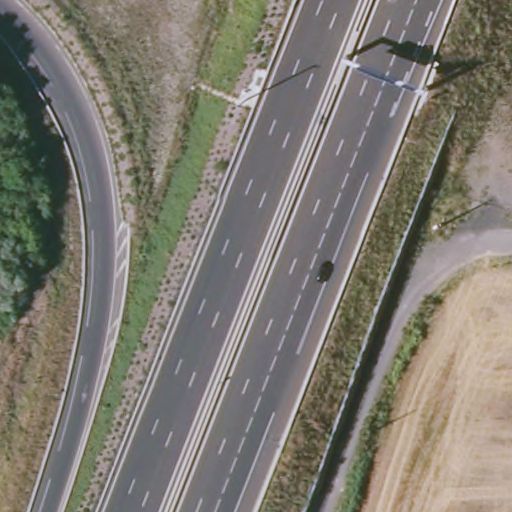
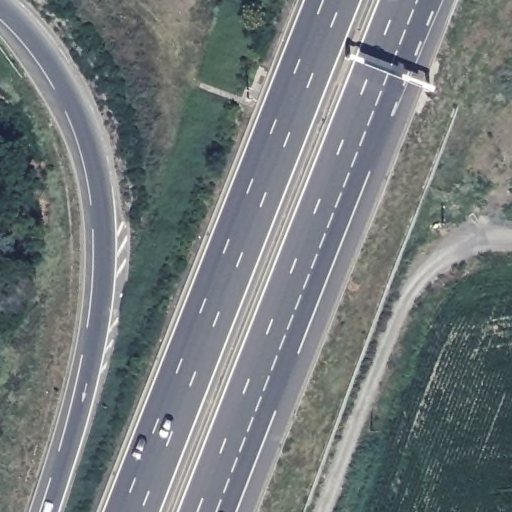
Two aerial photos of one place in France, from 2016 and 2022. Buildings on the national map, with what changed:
[]

